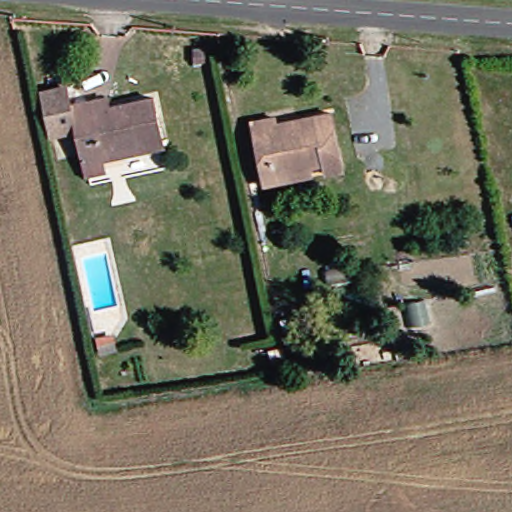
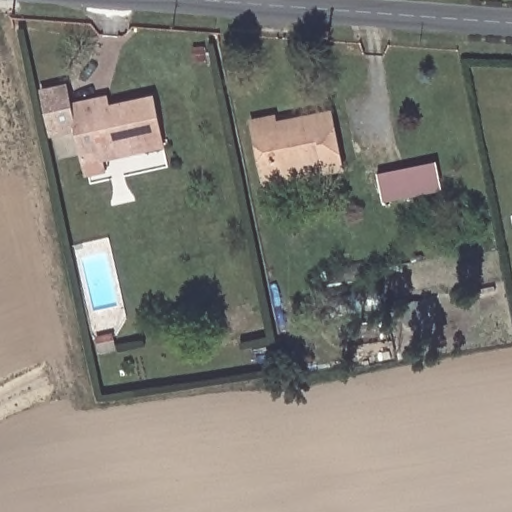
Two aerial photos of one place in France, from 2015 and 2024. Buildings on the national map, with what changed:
unchanged [(98,159),(100,173),(80,177),(75,157),(73,157),(70,131),(45,136),(36,93),(61,88),(65,107),(102,99),(105,108),(148,99),(156,140),(157,148),(98,159)]
unchanged [(341,175),(322,179),(317,170),(261,182),(247,129),(270,124),(295,118),(296,123),(329,115),(341,175)]
new [(382,203),(376,174),(436,162),(442,190),(382,203)]

